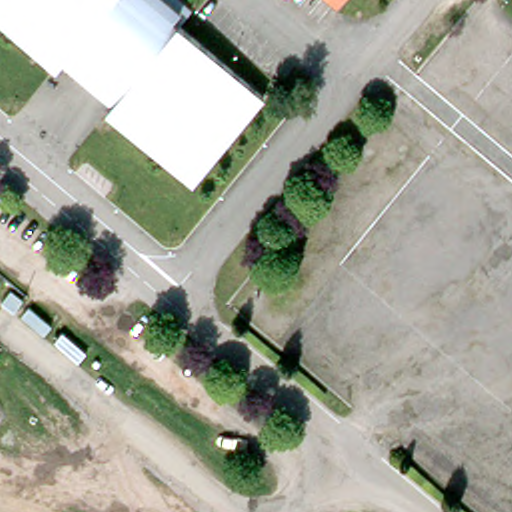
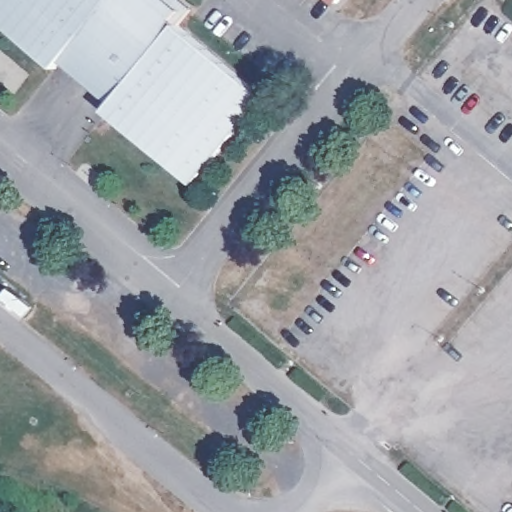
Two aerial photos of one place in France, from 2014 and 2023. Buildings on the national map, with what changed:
unchanged [(194,6),(177,23),(267,96),(192,182),(107,111),(112,103),(65,60),(57,70),(0,22),(0,0),(186,0),(194,6)]
unchanged [(335,1),(334,0),(337,0),(335,1)]

